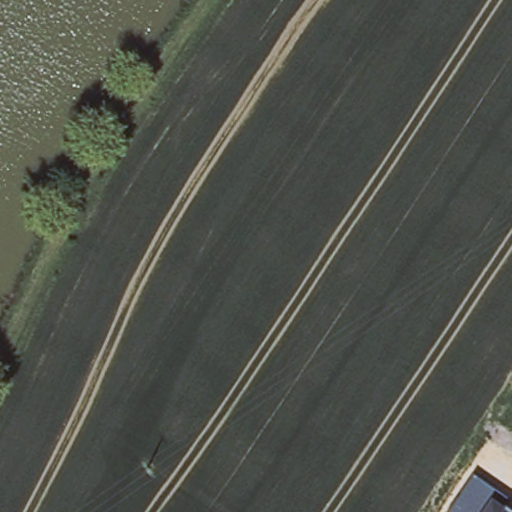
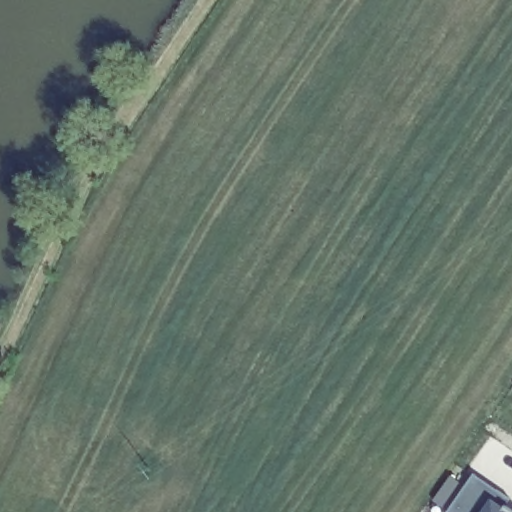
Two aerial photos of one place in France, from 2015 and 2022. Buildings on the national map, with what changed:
unchanged [(506,507),(512,511),(512,512),(446,512),(472,473),(511,498),(506,507)]

